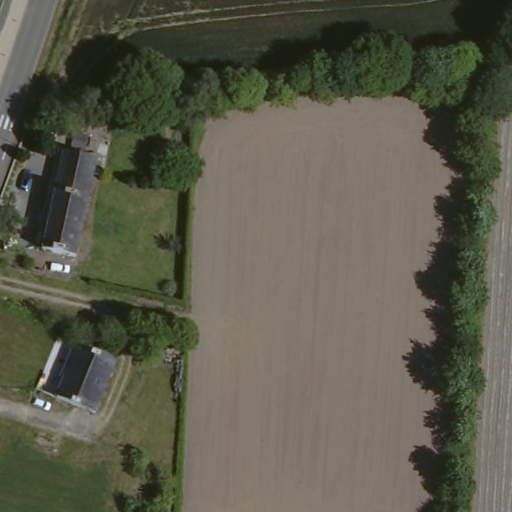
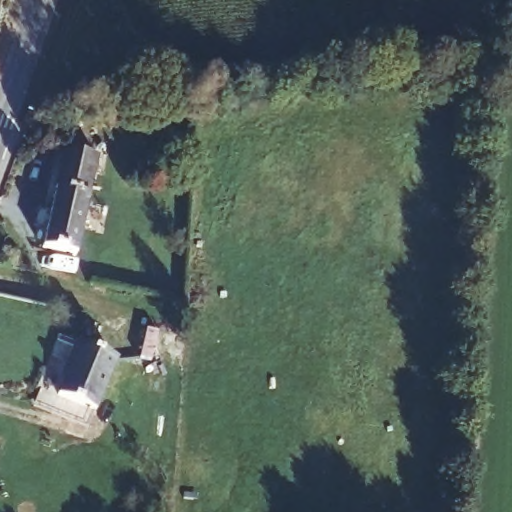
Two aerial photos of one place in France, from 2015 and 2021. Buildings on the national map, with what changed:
unchanged [(91,136),(89,149),(99,151),(76,259),(61,256),(63,244),(43,240),(68,133),(91,136)]
unchanged [(112,350),(93,402),(56,388),(67,360),(63,360),(71,336),(112,350)]

